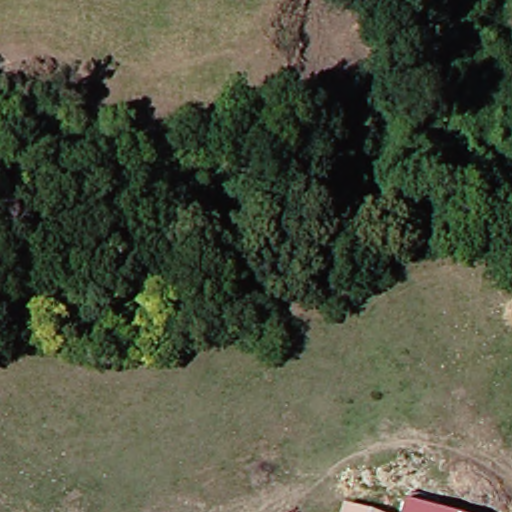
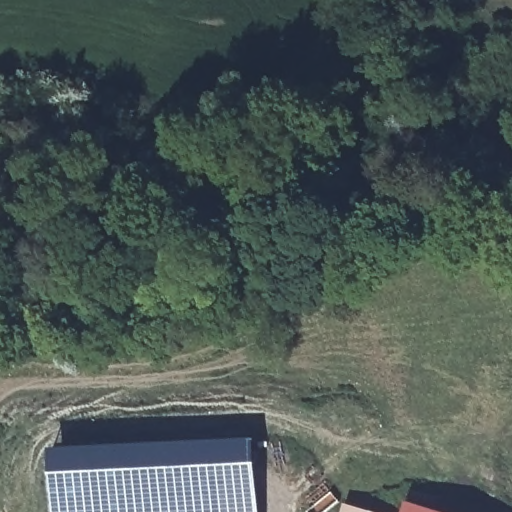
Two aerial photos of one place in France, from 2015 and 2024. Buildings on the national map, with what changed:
new [(254,512),(53,512),(48,444),(250,436),(254,512)]
new [(439,512),(407,512),(410,503),(439,512)]
unchanged [(373,512),(353,512),(355,506),(373,512)]

